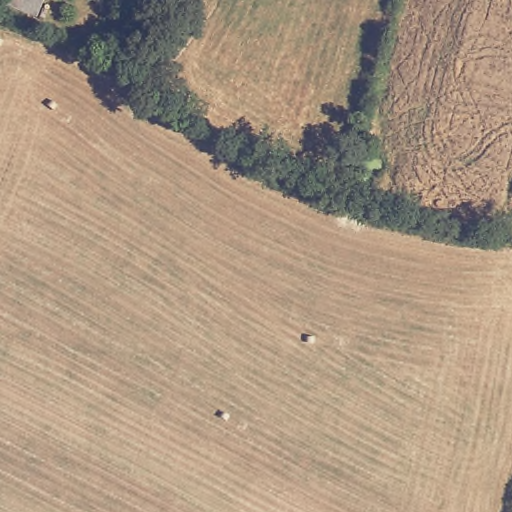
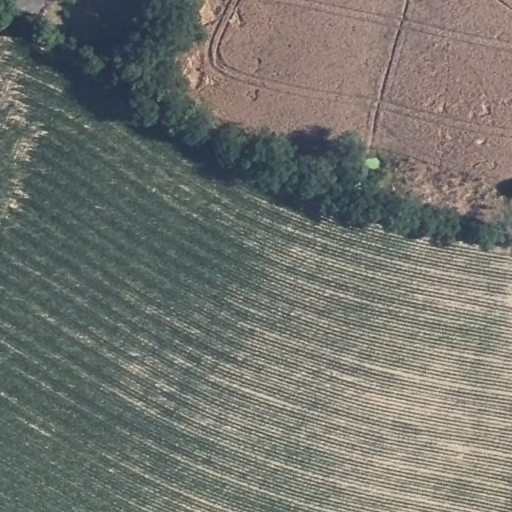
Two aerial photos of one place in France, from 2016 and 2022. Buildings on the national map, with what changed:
unchanged [(11,0),(45,0),(41,11),(11,0)]

